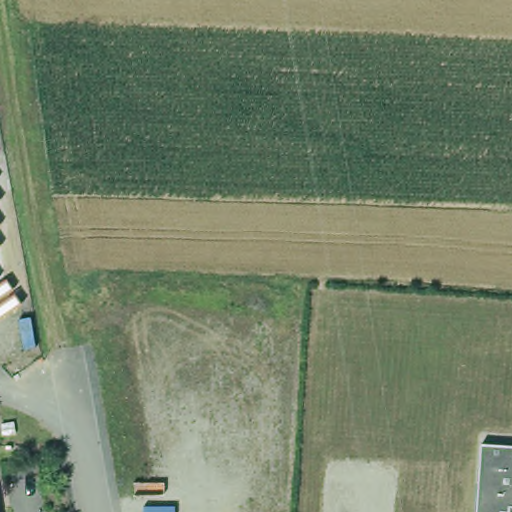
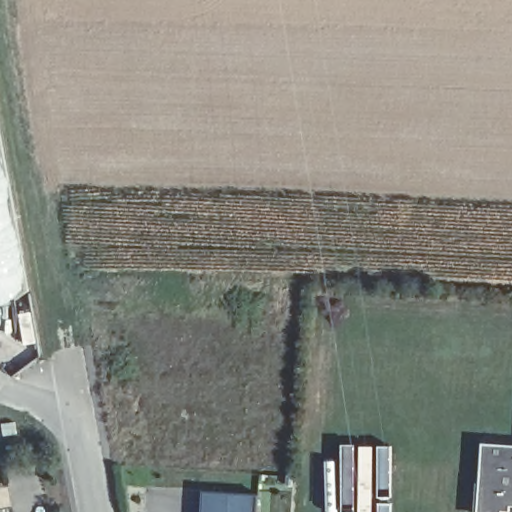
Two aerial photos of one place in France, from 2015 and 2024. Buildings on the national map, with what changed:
unchanged [(512,506),(500,505),(499,512),(494,512),(474,510),(480,441),(512,443),(512,506)]
new [(260,493),(258,512),(203,512),(205,490),(260,493)]

